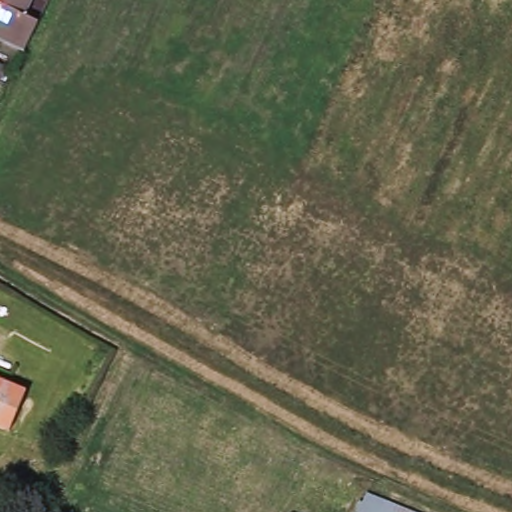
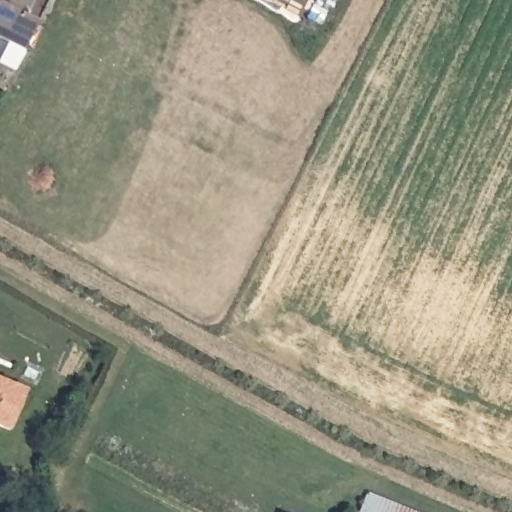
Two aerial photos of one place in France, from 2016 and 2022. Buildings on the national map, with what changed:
unchanged [(24,18),(37,25),(27,44),(22,53),(0,41),(0,0),(33,0),(24,18)]
unchanged [(12,422),(0,417),(0,369),(30,383),(12,422)]
unchanged [(358,505),(355,512),(289,512),(302,481),(358,505)]
unchanged [(361,507),(367,494),(411,512),(355,512),(358,505),(361,507)]

